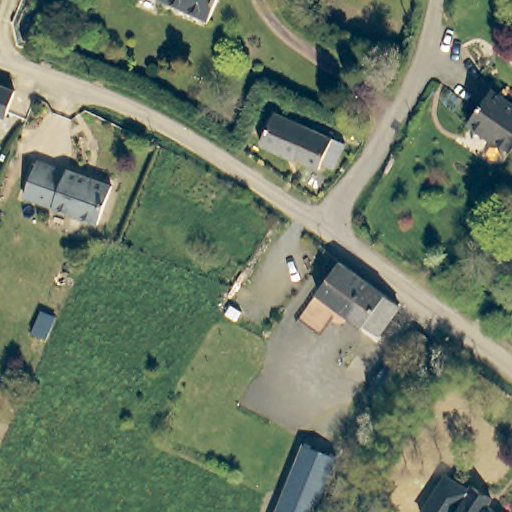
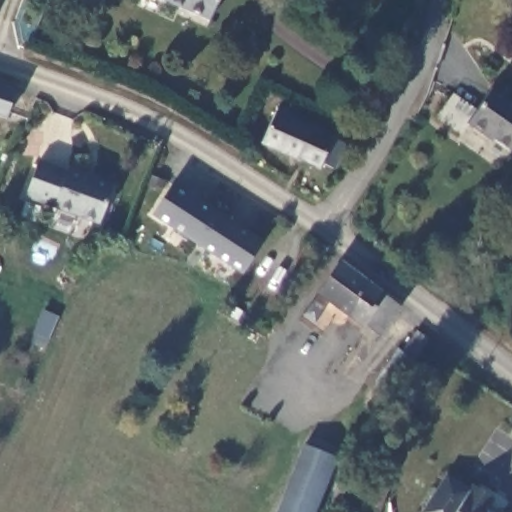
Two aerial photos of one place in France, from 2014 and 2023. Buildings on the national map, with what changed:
unchanged [(214,23),(166,0),(225,0),(214,23)]
unchanged [(7,120),(0,117),(0,86),(17,92),(7,120)]
unchanged [(512,104),(512,146),(510,149),(493,135),(489,140),(468,125),(496,92),(512,104)]
unchanged [(342,153),(336,166),(322,159),(319,167),(295,156),(293,160),(257,144),(271,113),(331,141),(328,146),(342,153)]
unchanged [(62,173),(63,170),(106,183),(94,222),(19,196),(31,162),(62,173)]
new [(241,275),(151,216),(172,183),(263,242),(241,275)]
demolished [(222,282),(213,276),(223,260),(232,266),(222,282)]
unchanged [(389,307),(370,335),(355,325),(354,327),(306,293),(325,262),(389,307)]
unchanged [(361,380),(385,343),(390,347),(403,327),(416,336),(379,391),(361,380)]
unchanged [(303,512),(265,512),(294,443),(326,457),(303,512)]
unchanged [(423,512),(447,475),(469,489),(471,487),(474,489),(461,512),(423,512)]
unchanged [(495,512),(461,512),(474,489),(493,500),(489,509),(495,512)]

